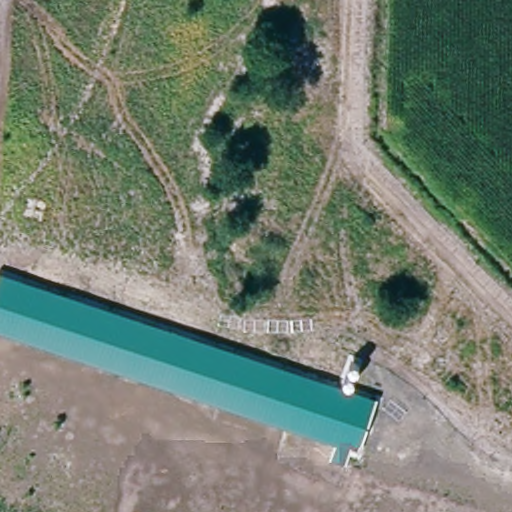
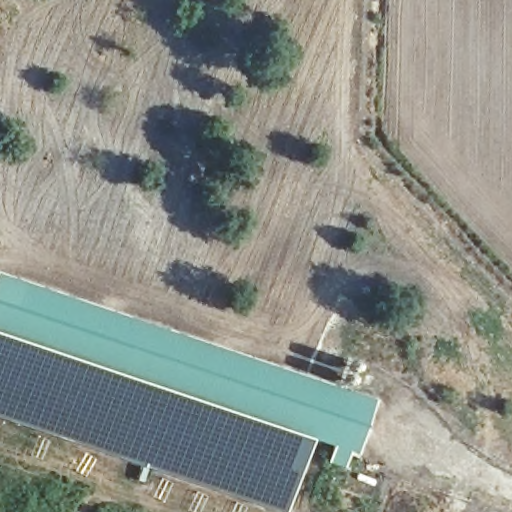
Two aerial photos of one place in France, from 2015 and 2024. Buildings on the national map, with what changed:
unchanged [(357,453),(351,451),(345,469),(330,465),(336,446),(0,333),(0,273),(376,398),(357,453)]
new [(287,512),(275,512),(0,420),(0,333),(312,438),(287,512)]

